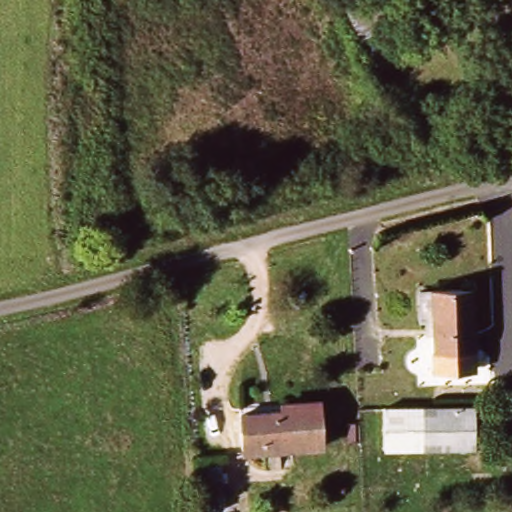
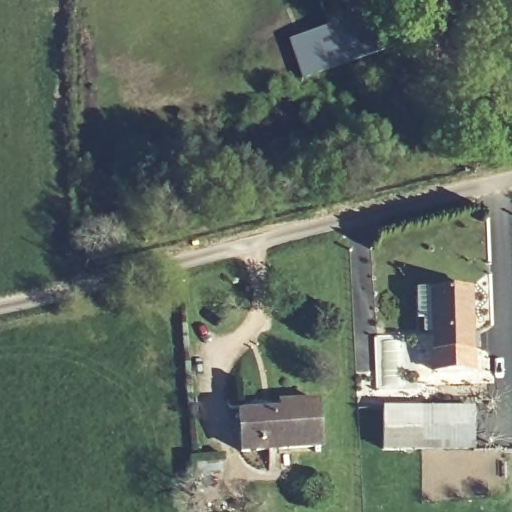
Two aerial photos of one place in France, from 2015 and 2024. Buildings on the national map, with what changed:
new [(290,40),(361,14),(375,53),(304,79),(290,40)]
unchanged [(438,365),(437,347),(433,347),(432,315),(419,315),(418,284),(471,281),(474,344),(476,364),(438,365)]
unchanged [(275,404),(315,401),(320,448),(239,454),(235,416),(277,413),(275,404)]
unchanged [(424,450),(384,451),(384,406),(423,408),(424,450)]
unchanged [(475,406),(477,448),(424,450),(423,408),(475,406)]

